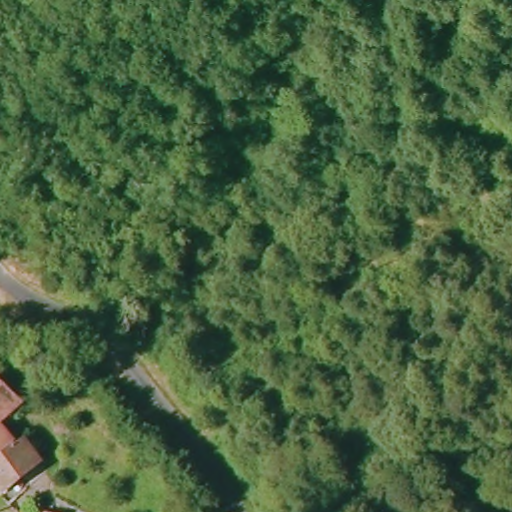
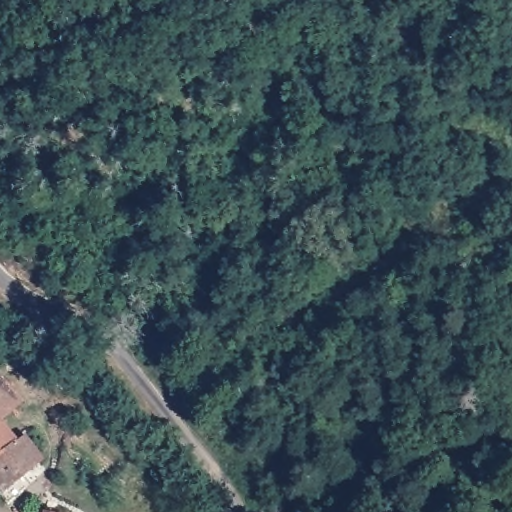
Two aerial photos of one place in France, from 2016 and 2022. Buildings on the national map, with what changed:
unchanged [(6,490),(0,483),(0,370),(27,397),(9,415),(22,439),(29,435),(48,458),(6,490)]
unchanged [(45,508),(59,512),(44,512),(45,508)]

